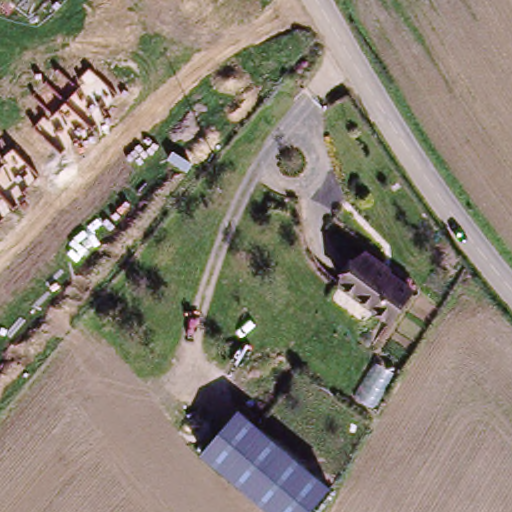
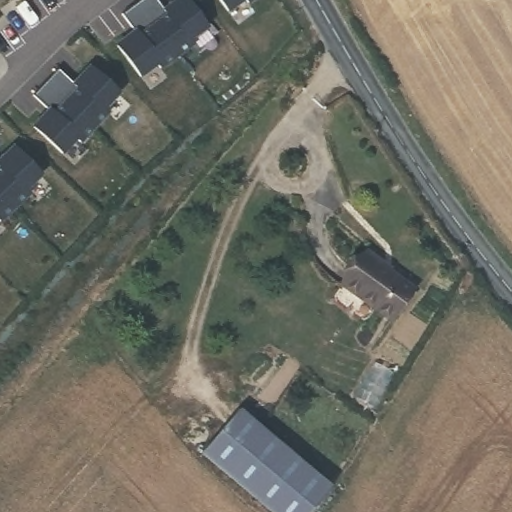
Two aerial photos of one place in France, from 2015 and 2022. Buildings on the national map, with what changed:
new [(156,0),(164,11),(179,0),(184,0),(205,29),(190,40),(192,45),(175,58),(136,3),(141,0),(156,0)]
new [(245,1),(228,13),(218,0),(256,0),(248,5),(245,1)]
new [(134,33),(121,14),(136,3),(175,58),(158,70),(155,66),(139,77),(116,46),(134,33)]
new [(57,68),(73,84),(88,68),(117,95),(103,109),(107,113),(93,128),(44,82),(57,68)]
new [(44,82),(93,128),(78,144),(74,140),(60,154),(32,127),(47,111),(31,95),(44,82)]
new [(38,175),(24,189),(28,193),(12,208),(0,195),(0,159),(12,147),(38,175)]
new [(0,220),(0,195),(12,208),(0,220)]
unchanged [(373,252),(389,265),(387,267),(417,294),(393,322),(347,283),(373,252)]
unchanged [(253,413),(338,499),(325,512),(272,512),(214,453),(253,413)]

